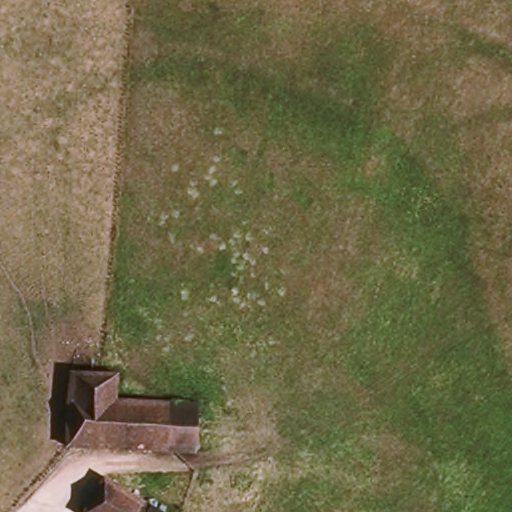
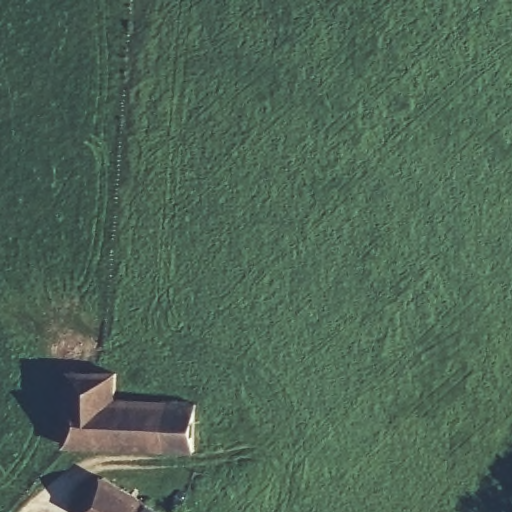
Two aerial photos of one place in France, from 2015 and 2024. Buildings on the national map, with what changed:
unchanged [(117,376),(116,398),(199,404),(196,455),(69,447),(72,373),(117,376)]
unchanged [(81,510),(102,475),(163,512),(85,512),(81,510)]

